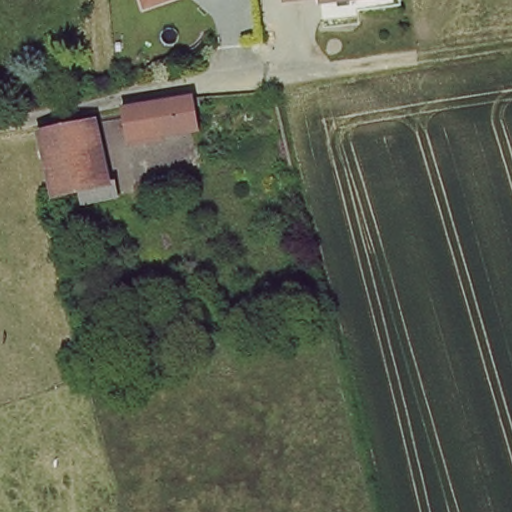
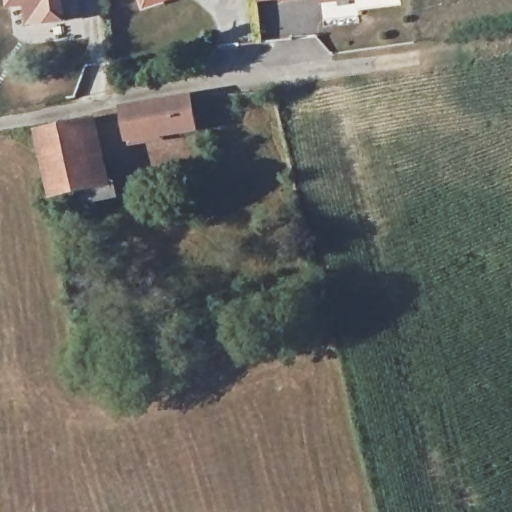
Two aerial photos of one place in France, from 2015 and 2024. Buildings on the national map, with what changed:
new [(26,26),(23,8),(7,9),(6,0),(64,0),(65,23),(26,26)]
unchanged [(141,0),(162,0),(144,6),(141,0)]
unchanged [(313,0),(355,0),(315,4),(313,0)]
unchanged [(196,102),(200,131),(127,143),(123,114),(196,102)]
unchanged [(71,192),(46,196),(31,129),(81,122),(91,179),(108,176),(113,201),(74,206),(71,192)]

